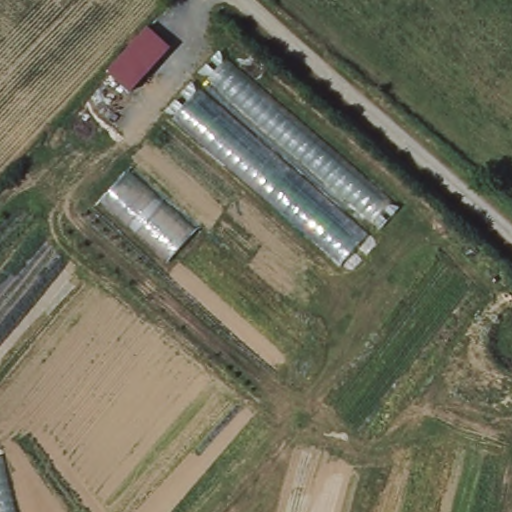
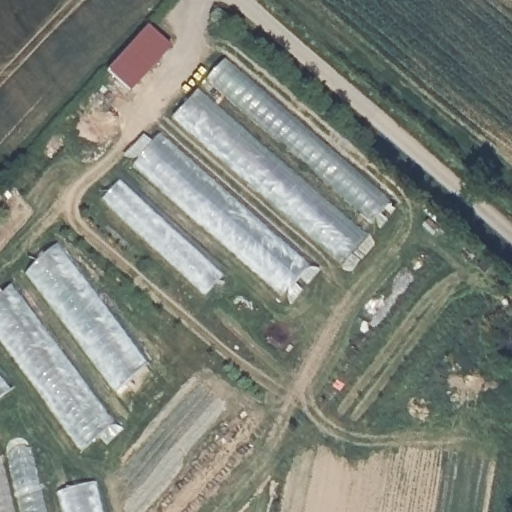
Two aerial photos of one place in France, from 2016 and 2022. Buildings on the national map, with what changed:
unchanged [(129,92),(105,67),(150,24),(171,47),(129,92)]
unchanged [(389,204),(372,222),(205,79),(223,57),(389,204)]
unchanged [(363,237),(341,262),(174,115),(196,92),(363,237)]
new [(132,163),(160,134),(307,266),(281,295),(132,163)]
new [(0,340),(0,293),(12,285),(114,421),(81,450),(0,340)]
new [(11,390),(0,397),(0,376),(11,390)]
new [(24,512),(8,452),(30,447),(47,512),(24,512)]
unchanged [(17,512),(0,512),(0,456),(3,455),(17,512)]
new [(105,512),(66,512),(61,491),(97,481),(105,512)]

